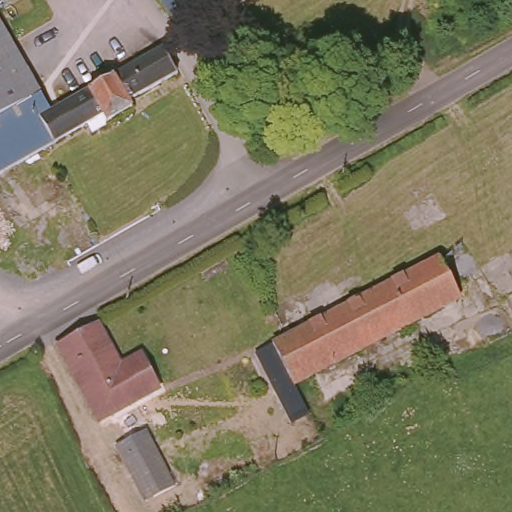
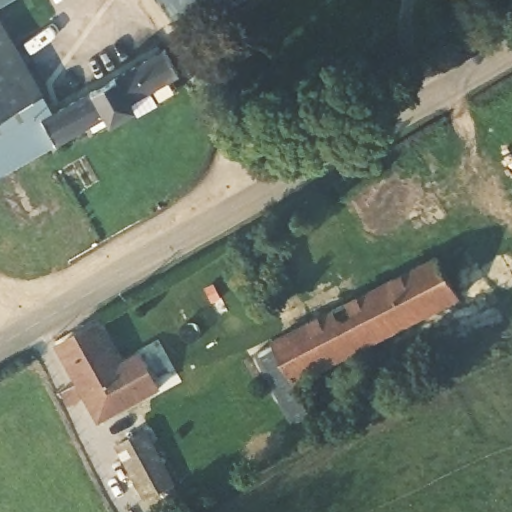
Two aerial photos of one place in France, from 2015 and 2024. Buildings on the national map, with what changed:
unchanged [(0,0),(11,0),(0,6),(0,0)]
unchanged [(215,24),(188,40),(182,31),(179,33),(159,0),(227,0),(235,13),(215,24)]
unchanged [(52,137),(0,165),(0,45),(40,114),(52,137)]
unchanged [(170,49),(185,72),(139,96),(142,104),(109,119),(105,112),(52,137),(40,114),(170,49)]
unchanged [(282,342),(447,253),(470,293),(305,382),(287,392),(264,351),(282,342)]
unchanged [(57,346),(102,322),(125,363),(144,353),(163,388),(99,425),(85,400),(57,346)]
unchanged [(177,491),(152,506),(119,451),(145,436),(177,491)]

